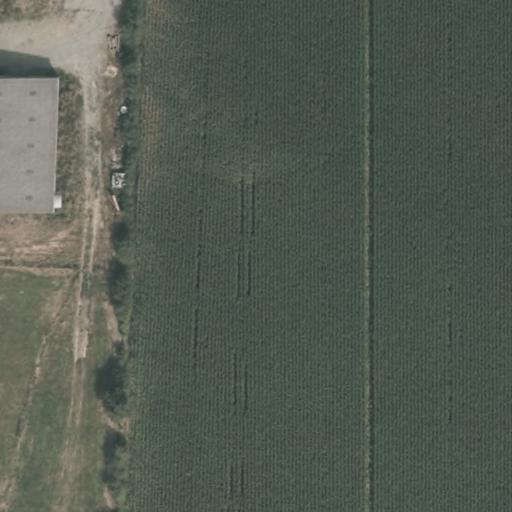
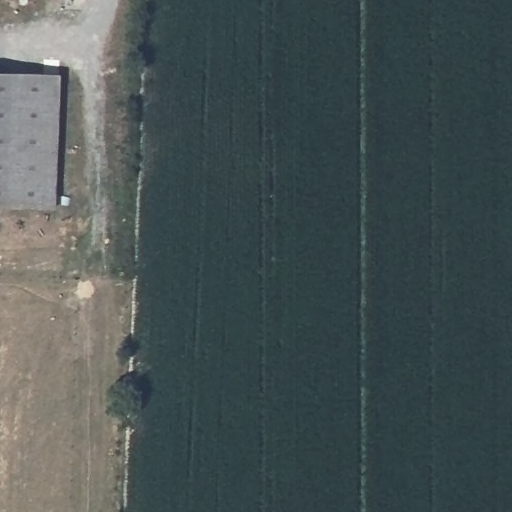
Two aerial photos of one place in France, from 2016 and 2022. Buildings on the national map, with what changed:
unchanged [(60,77),(54,213),(0,211),(0,75),(60,77)]

